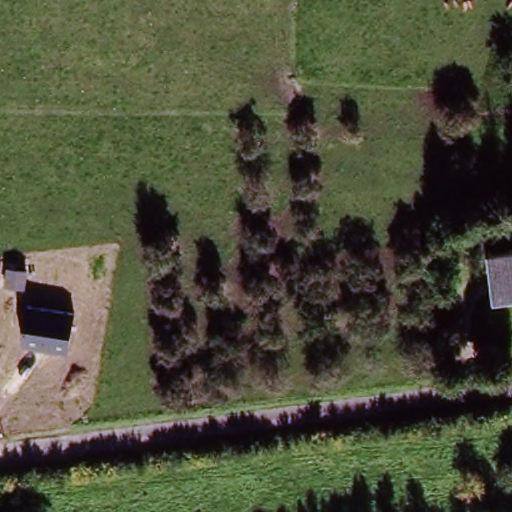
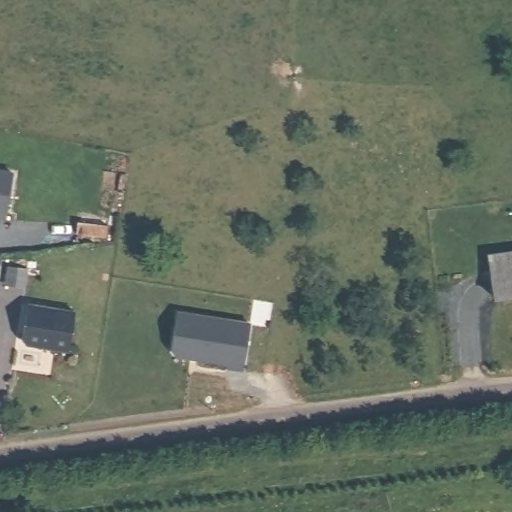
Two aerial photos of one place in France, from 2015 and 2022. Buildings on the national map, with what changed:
new [(5,216),(0,215),(0,169),(11,171),(5,216)]
unchanged [(490,257),(512,255),(512,296),(493,298),(490,257)]
unchanged [(29,302),(75,310),(67,350),(22,342),(29,302)]
new [(250,322),(243,371),(227,370),(227,366),(172,356),(178,310),(250,322)]

